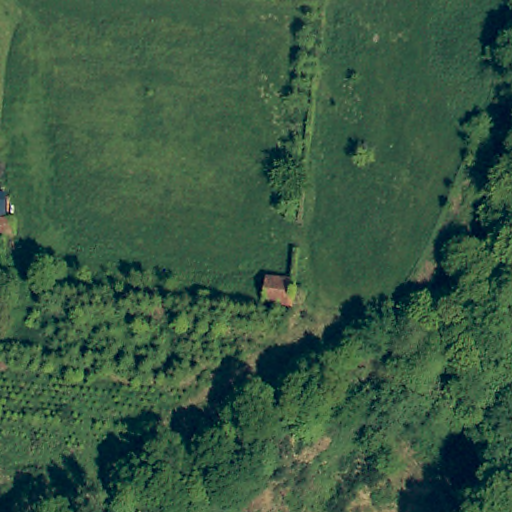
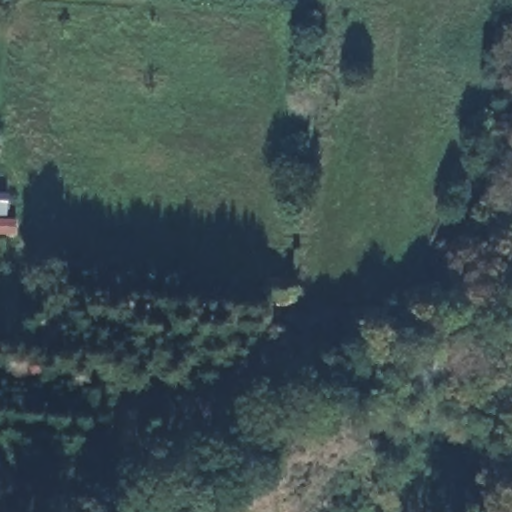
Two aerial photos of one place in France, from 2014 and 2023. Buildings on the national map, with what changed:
unchanged [(0,192),(5,192),(3,217),(14,217),(13,232),(0,231),(0,192)]
unchanged [(261,307),(262,280),(291,282),(290,287),(301,287),(303,292),(304,297),(303,302),(301,306),(300,307),(287,306),(287,310),(261,307)]

